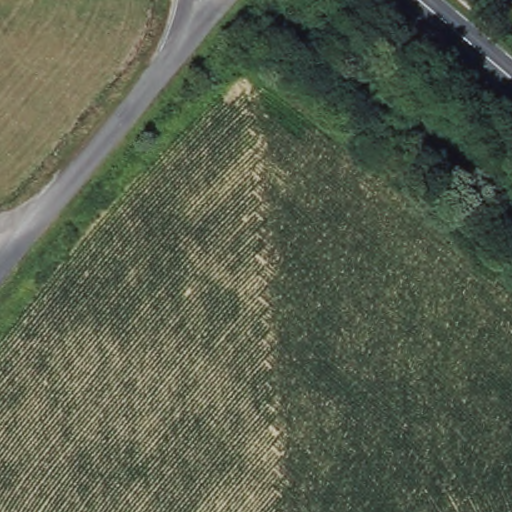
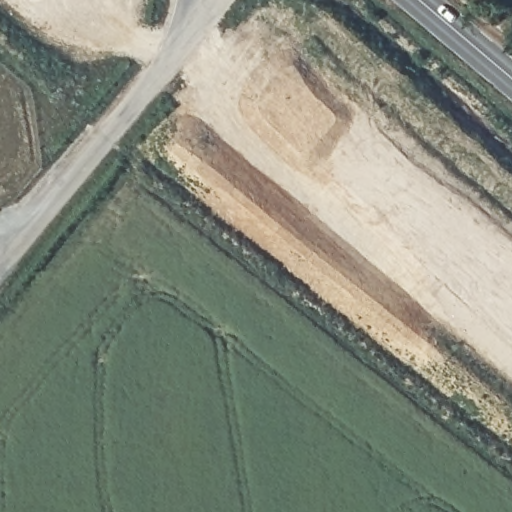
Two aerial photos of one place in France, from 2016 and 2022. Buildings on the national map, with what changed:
unchanged [(486,0),(512,0),(512,4),(503,14),(486,0)]

